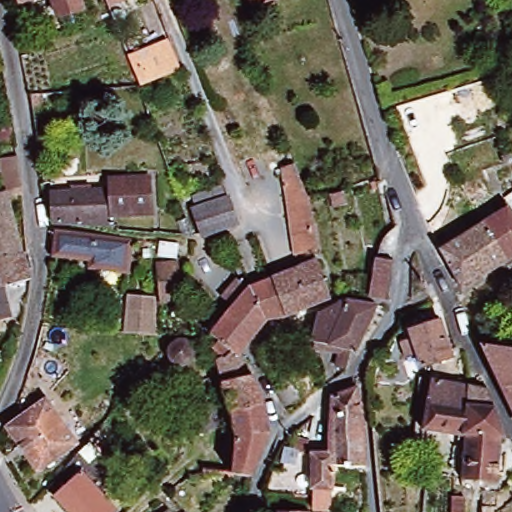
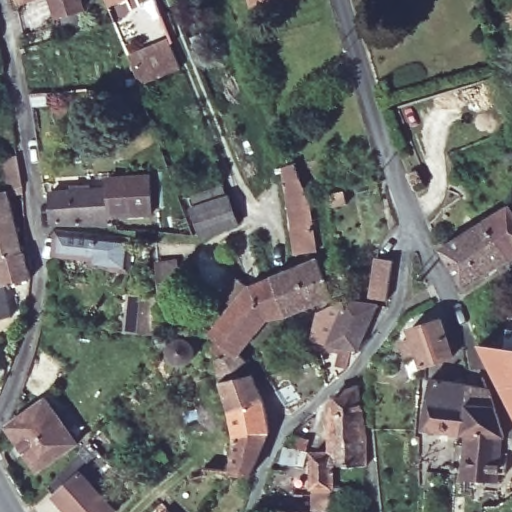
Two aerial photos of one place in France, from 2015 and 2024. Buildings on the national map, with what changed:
unchanged [(17,0),(23,0),(17,1),(17,0)]
unchanged [(82,12),(55,18),(51,0),(79,0),(82,12)]
unchanged [(120,1),(104,7),(101,0),(123,0),(120,1)]
unchanged [(255,11),(251,0),(290,0),(255,11)]
unchanged [(180,75),(140,89),(129,59),(169,45),(180,75)]
unchanged [(9,197),(20,252),(0,257),(0,192),(4,191),(2,182),(6,181),(1,158),(17,155),(22,187),(23,195),(9,197)]
unchanged [(150,214),(111,214),(111,219),(54,220),(50,219),(50,189),(110,190),(110,178),(149,179),(150,214)]
unchanged [(290,209),(287,185),(302,182),(311,202),(317,254),(299,257),(290,209)]
unchanged [(235,223),(202,237),(191,210),(225,197),(235,223)]
unchanged [(512,256),(505,261),(462,286),(440,249),(483,222),(507,209),(512,217),(512,256)]
unchanged [(52,227),(127,236),(123,268),(85,264),(86,257),(49,252),(52,227)]
unchanged [(20,252),(26,280),(0,286),(0,257),(20,252)]
unchanged [(371,303),(378,257),(392,261),(385,305),(371,303)]
unchanged [(255,288),(275,280),(320,262),(328,301),(285,317),(268,323),(251,329),(250,331),(249,333),(235,352),(241,365),(212,375),(214,341),(235,310),(255,288)]
unchanged [(159,336),(127,333),(129,305),(130,296),(151,297),(154,307),(159,336)]
unchanged [(4,318),(0,320),(0,297),(4,318)]
unchanged [(366,307),(373,310),(355,353),(327,347),(311,342),(313,331),(317,312),(338,305),(342,305),(348,305),(366,307)]
unchanged [(431,368),(421,368),(406,333),(433,319),(448,358),(451,377),(432,379),(431,368)]
unchanged [(507,332),(512,332),(512,347),(505,347),(507,332)]
unchanged [(176,358),(175,355),(175,351),(177,347),(180,344),(184,343),(188,343),(191,346),(194,350),(195,353),(194,358),(191,361),(187,363),(183,363),(179,362),(176,358)]
unchanged [(480,362),(481,359),(512,356),(512,413),(499,393),(480,362)]
unchanged [(209,427),(204,398),(220,397),(213,379),(212,375),(245,372),(248,377),(258,407),(265,433),(265,435),(265,437),(248,481),(235,474),(239,437),(234,423),(209,427)]
unchanged [(319,506),(318,488),(311,487),(311,452),(332,451),(330,433),(330,396),(355,383),(364,427),(363,435),(365,463),(332,463),(334,506),(319,506)]
unchanged [(431,384),(452,385),(468,387),(460,440),(451,439),(415,433),(431,384)]
unchanged [(468,387),(483,393),(491,407),(500,440),(460,440),(468,387)]
unchanged [(5,428),(45,401),(76,449),(36,476),(5,428)]
unchanged [(500,440),(496,486),(462,486),(460,440),(500,440)]
unchanged [(110,512),(64,512),(49,494),(89,447),(117,478),(96,497),(110,512)]
unchanged [(158,502),(167,512),(157,512),(152,507),(158,502)]

